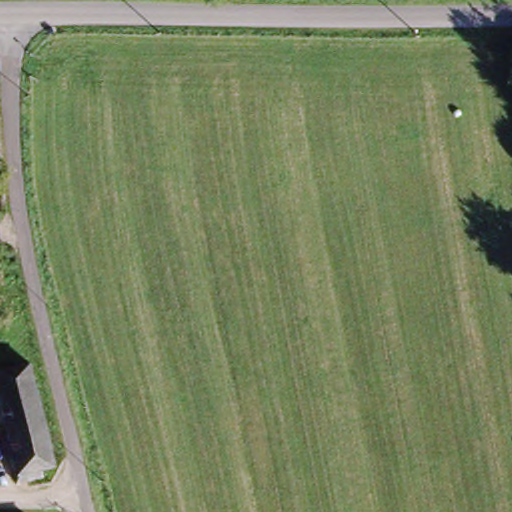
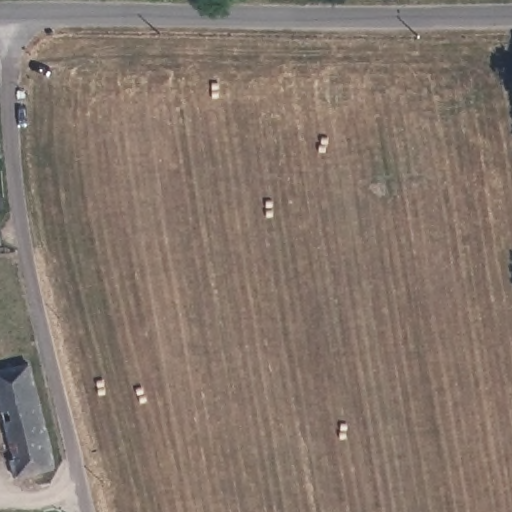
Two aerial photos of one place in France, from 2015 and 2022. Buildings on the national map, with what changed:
unchanged [(42,463),(45,477),(13,479),(0,391),(0,370),(33,365),(50,460),(42,463)]

